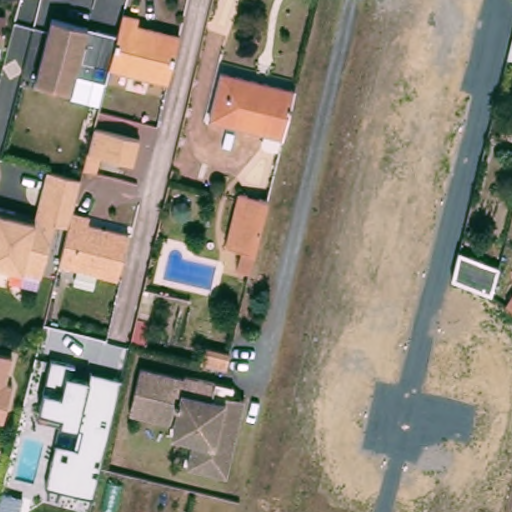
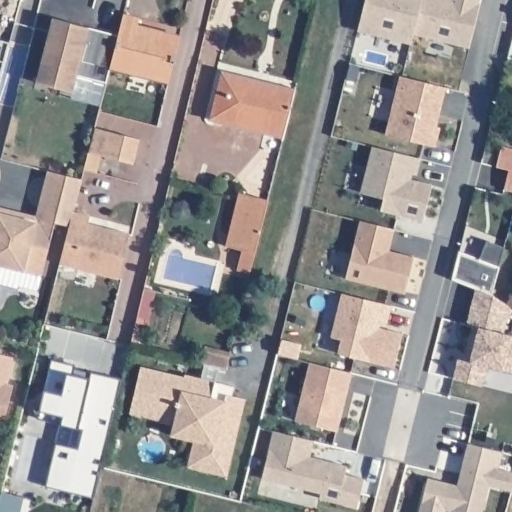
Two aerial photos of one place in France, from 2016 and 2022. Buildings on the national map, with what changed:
new [(367,0),(422,0),(414,33),(411,42),(360,30),(367,0)]
new [(469,47),(414,33),(422,0),(481,0),(469,47)]
unchanged [(168,82),(110,67),(111,63),(118,35),(120,29),(123,14),(139,17),(137,25),(180,35),(168,82)]
unchanged [(0,46),(0,16),(6,16),(6,17),(4,46),(0,46)]
unchanged [(111,63),(110,67),(109,79),(81,69),(75,91),(40,80),(56,17),(120,29),(111,63)]
unchanged [(284,137),(210,119),(221,71),(296,90),(284,137)]
new [(447,86),(442,103),(441,110),(437,125),(441,126),(436,145),(386,133),(401,75),(447,86)]
unchanged [(133,164),(88,152),(95,128),(95,127),(139,139),(133,164)]
new [(374,145),(421,157),(417,174),(413,172),(411,179),(433,184),(424,220),(382,209),(385,197),(362,191),(374,145)]
new [(496,165),(501,145),(512,148),(512,190),(504,188),(509,169),(496,165)]
unchanged [(0,263),(0,205),(21,210),(42,215),(54,170),(86,179),(78,212),(75,225),(61,221),(49,266),(46,275),(29,270),(0,263)]
unchanged [(250,273),(237,270),(242,250),(225,246),(238,192),(267,200),(250,273)]
unchanged [(123,278),(65,263),(75,225),(78,212),(95,216),(93,224),(134,234),(123,278)]
new [(395,228),(391,244),(390,250),(415,255),(405,292),(346,277),(361,220),(395,228)]
new [(452,278),(456,261),(496,276),(492,293),(452,278)]
new [(486,365),(481,385),(454,377),(458,351),(465,352),(472,325),(467,323),(476,287),(492,293),(508,305),(512,307),(512,311),(504,331),(512,335),(512,372),(486,365)]
new [(343,292),(392,305),(388,322),(382,320),(380,326),(403,332),(394,366),(339,352),(342,338),(332,336),(343,292)]
unchanged [(508,305),(512,298),(512,307),(508,305)]
unchanged [(206,346),(230,352),(226,369),(202,363),(206,346)]
unchanged [(11,377),(19,379),(11,422),(0,420),(0,351),(16,354),(11,377)]
unchanged [(56,445),(74,448),(78,428),(60,425),(63,416),(39,410),(45,391),(51,361),(69,365),(66,376),(90,380),(91,373),(119,380),(94,498),(46,486),(56,445)]
new [(310,361),(352,371),(338,430),(296,419),(310,361)]
unchanged [(190,375),(221,382),(239,386),(236,396),(249,400),(231,476),(192,467),(198,441),(192,440),(187,431),(189,421),(158,414),(156,420),(134,415),(146,366),(189,377),(190,375)]
new [(274,429),(314,439),(310,455),(347,464),(345,472),(365,477),(357,505),(319,496),(321,491),(262,476),(274,429)]
new [(458,484),(468,441),(503,450),(499,467),(512,470),(512,489),(490,483),(481,512),(466,512),(445,507),(444,512),(419,512),(428,476),(458,484)]
demolished [(394,512),(398,496),(413,500),(409,512),(394,512)]

